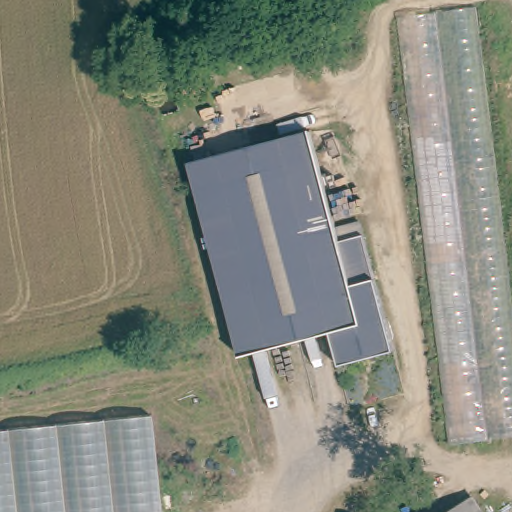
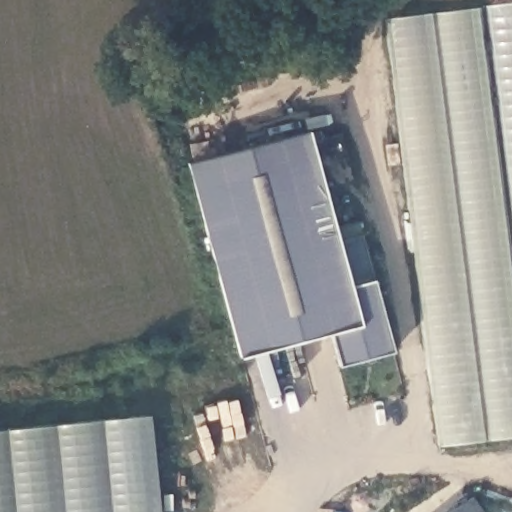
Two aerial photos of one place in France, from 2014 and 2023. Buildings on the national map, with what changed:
new [(484,6),(512,2),(512,214),(484,6)]
unchanged [(475,6),(512,303),(512,438),(451,445),(399,17),(475,6)]
unchanged [(330,332),(240,355),(188,160),(309,129),(336,227),(359,220),(394,350),(339,365),(330,332)]
unchanged [(165,512),(0,512),(0,430),(158,416),(165,512)]
unchanged [(470,493),(476,503),(482,512),(442,512),(446,510),(470,493)]

